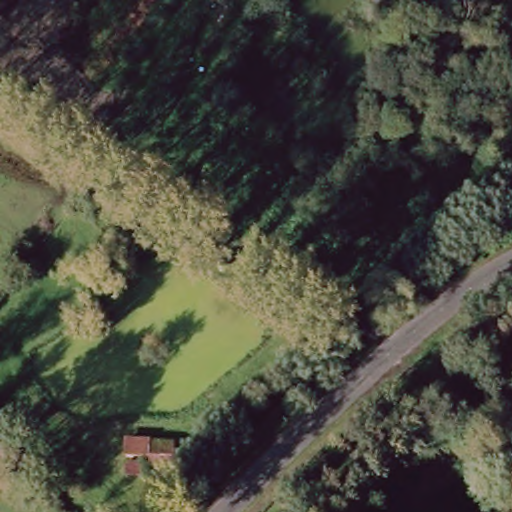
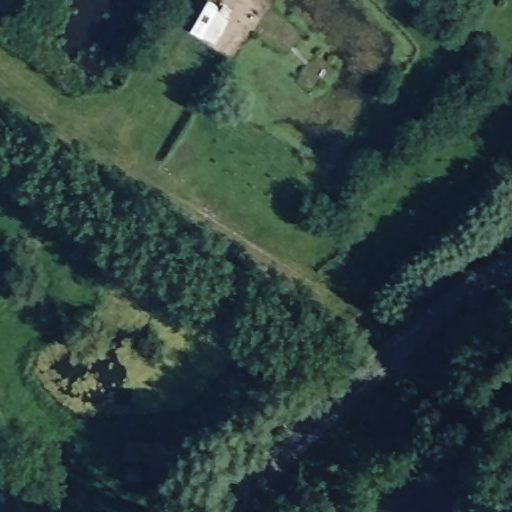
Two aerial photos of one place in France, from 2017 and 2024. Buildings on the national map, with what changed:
unchanged [(179,443),(176,471),(152,471),(152,461),(126,461),(127,442),(179,443)]

